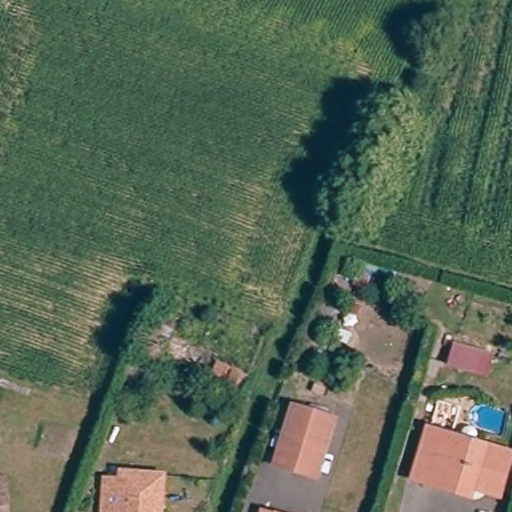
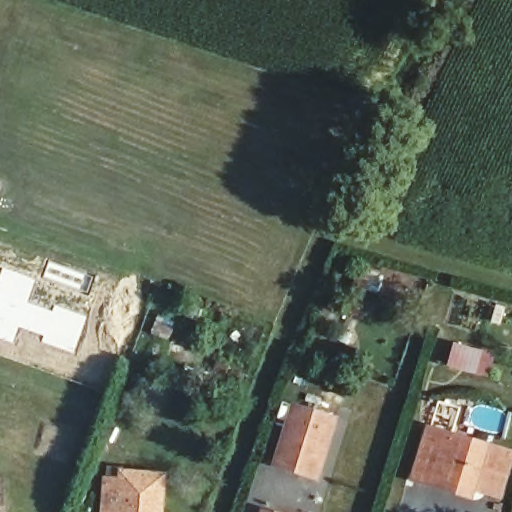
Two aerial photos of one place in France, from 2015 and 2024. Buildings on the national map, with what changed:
new [(36,280),(29,302),(54,311),(56,306),(88,317),(75,353),(43,342),(45,336),(20,328),(14,344),(0,339),(0,278),(4,269),(36,280)]
unchanged [(297,406),(336,421),(316,475),(277,461),(297,406)]
unchanged [(425,445),(431,429),(509,456),(496,493),(465,483),(462,494),(430,483),(414,478),(425,445)]
unchanged [(115,511),(118,478),(133,479),(134,469),(171,473),(167,512),(119,512),(115,511)]
unchanged [(264,506),(276,512),(262,512),(264,506)]

